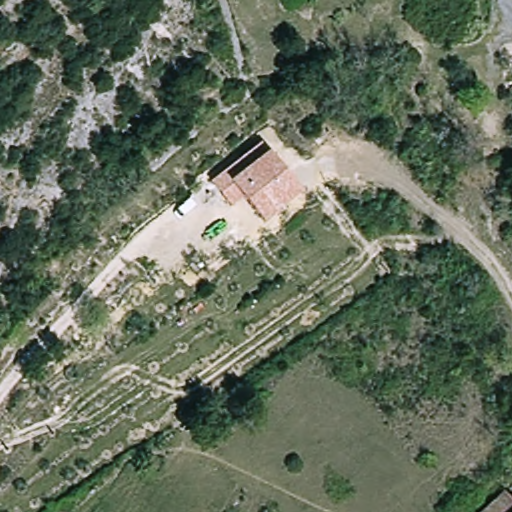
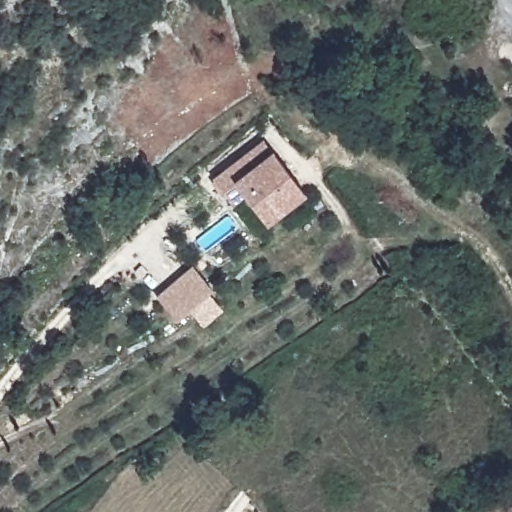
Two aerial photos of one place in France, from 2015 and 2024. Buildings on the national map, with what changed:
unchanged [(308,194),(267,222),(246,195),(233,205),(213,179),(264,139),(308,194)]
new [(176,320),(156,295),(193,264),(213,288),(176,320)]
unchanged [(482,512),(503,493),(512,503),(512,512),(482,512)]

